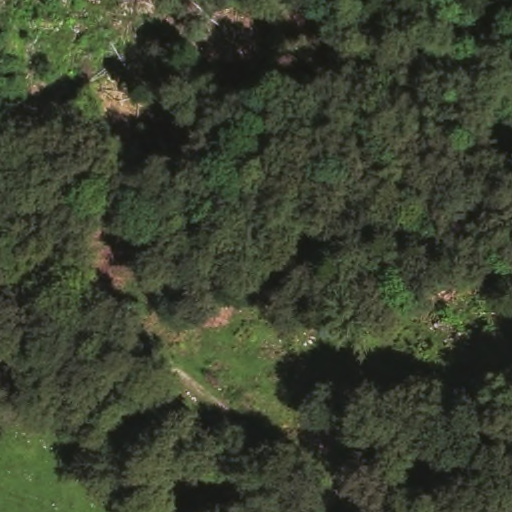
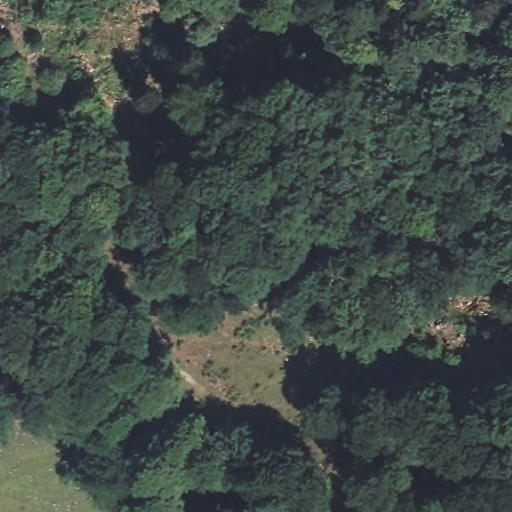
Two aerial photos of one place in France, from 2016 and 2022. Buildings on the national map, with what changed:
unchanged [(238,289),(262,319),(237,329),(212,298),(238,289)]

